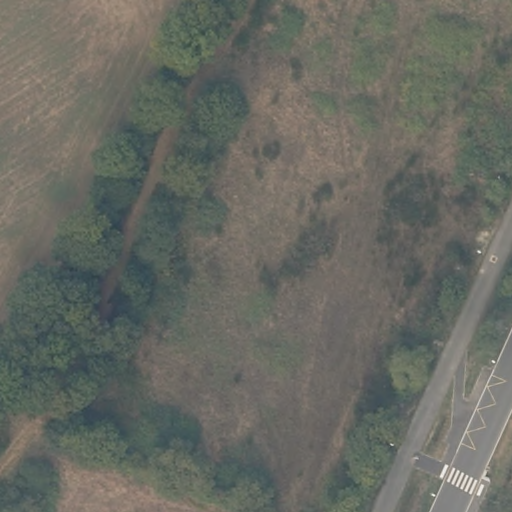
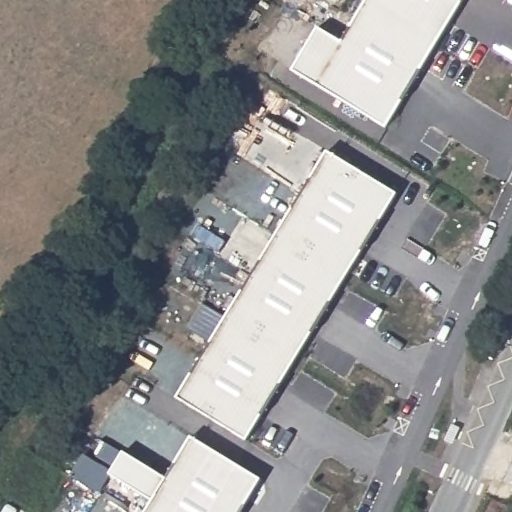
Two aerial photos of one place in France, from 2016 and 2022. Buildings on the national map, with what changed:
new [(368,0),(465,0),(387,129),(293,71),(319,27),(343,41),(368,0)]
new [(326,156),(395,198),(243,443),(175,401),(326,156)]
unchanged [(264,480),(244,512),(146,512),(192,436),(264,480)]
new [(111,474),(125,451),(167,477),(153,501),(111,474)]

